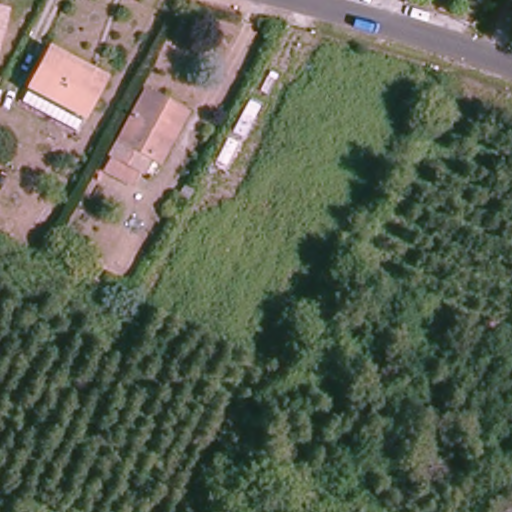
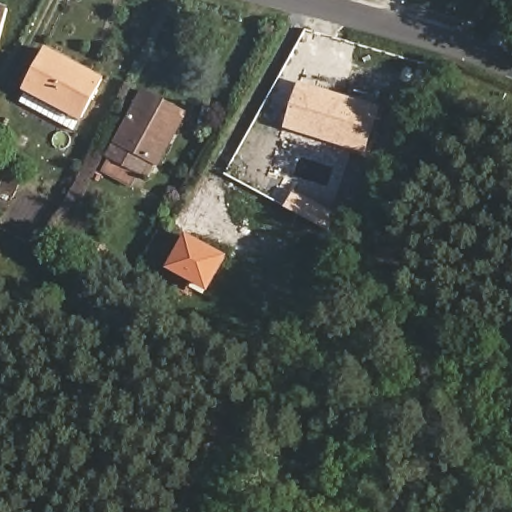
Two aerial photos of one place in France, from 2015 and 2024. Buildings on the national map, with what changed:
unchanged [(8,7),(0,39),(0,5),(8,7)]
unchanged [(112,79),(87,124),(27,91),(53,47),(112,79)]
new [(381,107),(366,154),(284,127),(299,82),(381,107)]
unchanged [(186,119),(161,166),(150,161),(141,177),(112,162),(145,97),(186,119)]
new [(187,232),(230,255),(210,291),(169,268),(171,264),(187,232)]

